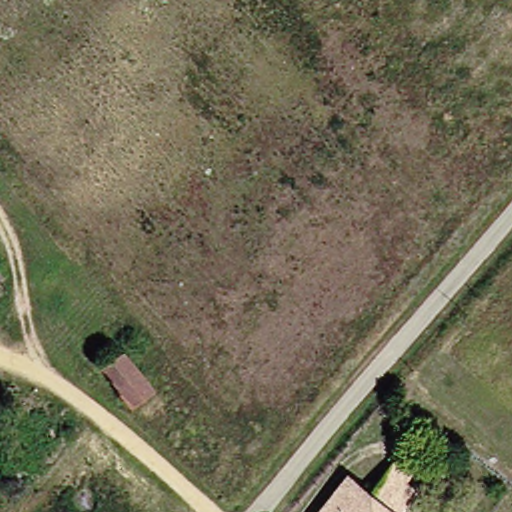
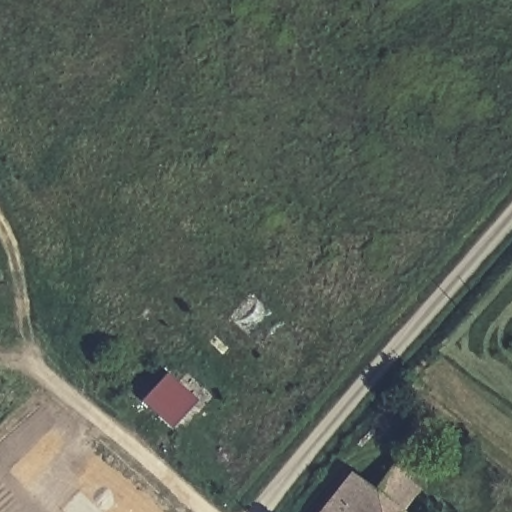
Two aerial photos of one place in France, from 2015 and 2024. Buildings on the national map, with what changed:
new [(194,400),(169,428),(140,400),(164,373),(194,400)]
unchanged [(391,455),(405,466),(400,475),(412,486),(395,507),(367,486),(391,455)]
unchanged [(367,486),(395,507),(392,512),(313,512),(345,470),(367,486)]

